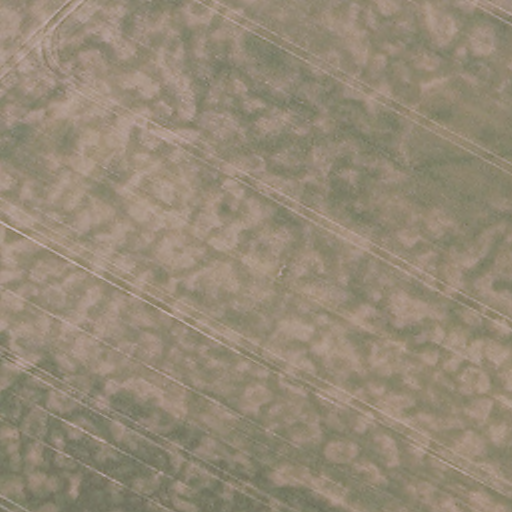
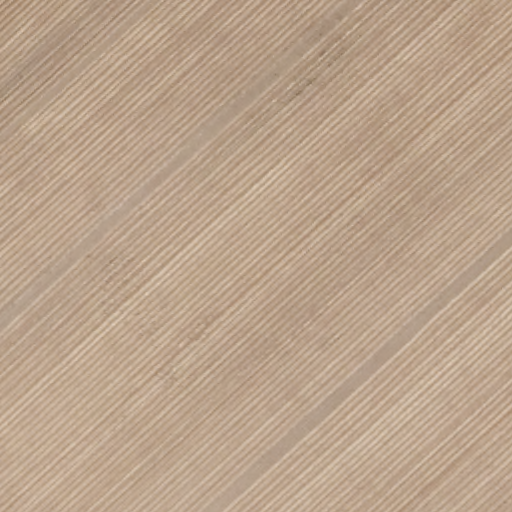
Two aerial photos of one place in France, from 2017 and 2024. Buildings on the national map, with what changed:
[]

